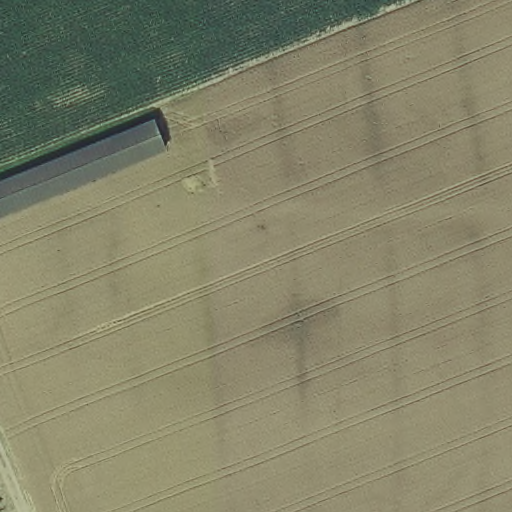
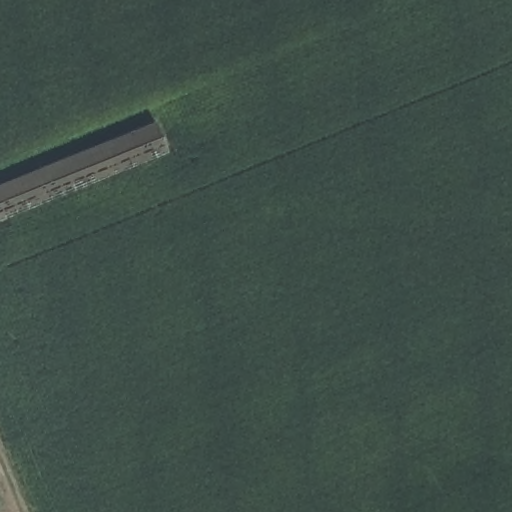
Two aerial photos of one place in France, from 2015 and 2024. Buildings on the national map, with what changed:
unchanged [(154,121),(166,149),(0,217),(0,184),(154,121)]

